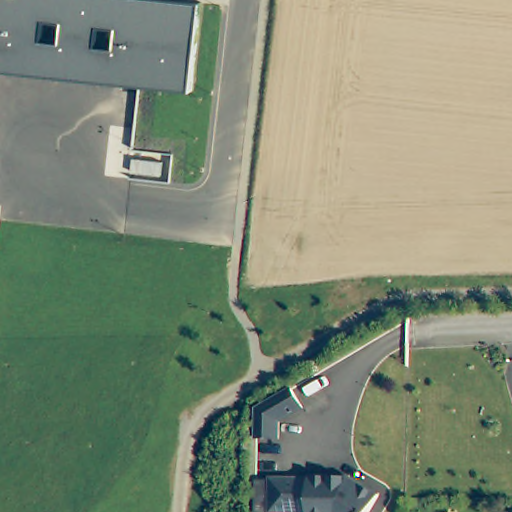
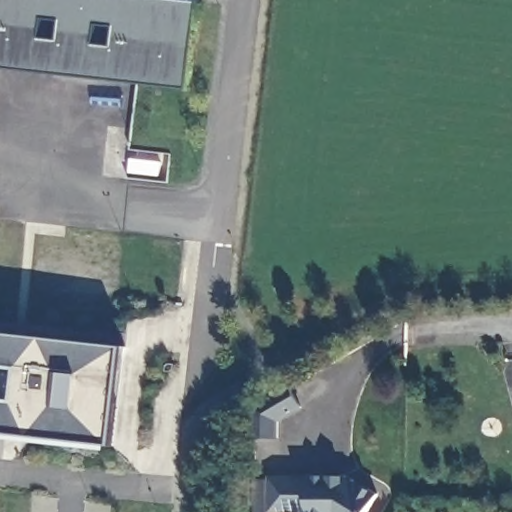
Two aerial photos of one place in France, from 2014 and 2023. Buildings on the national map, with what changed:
unchanged [(199,3),(190,89),(0,67),(0,0),(177,0),(199,3)]
new [(113,445),(0,432),(0,401),(18,403),(22,367),(0,365),(0,333),(124,347),(113,445)]
unchanged [(255,408),(290,388),(303,408),(280,422),(279,439),(256,439),(255,408)]
unchanged [(316,475),(316,473),(338,474),(338,477),(350,477),(350,474),(354,474),(385,492),(373,512),(316,512),(316,508),(275,508),(276,474),(316,475)]

